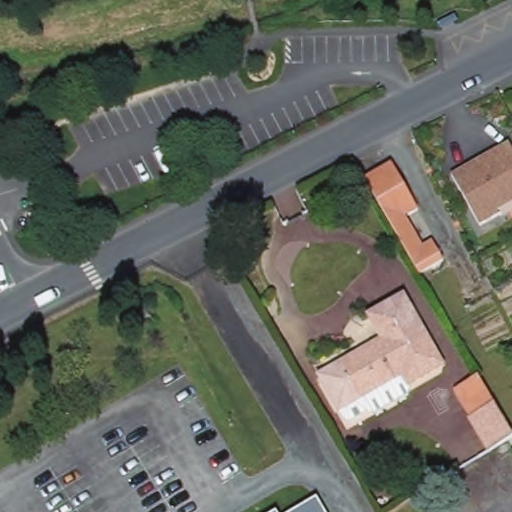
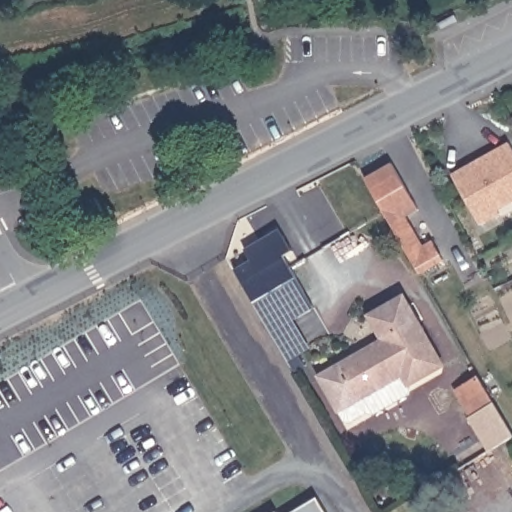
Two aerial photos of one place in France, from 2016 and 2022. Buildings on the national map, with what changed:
unchanged [(512,141),(512,202),(501,208),(503,212),(483,224),(453,175),(511,140),(512,141)]
unchanged [(389,160),(400,177),(417,205),(405,213),(423,242),(432,236),(444,255),(421,269),(391,222),(373,193),(363,176),(389,160)]
new [(235,270),(251,260),(244,249),(279,230),(292,252),(284,257),(314,309),(294,320),(311,350),(288,362),(235,270)]
unchanged [(366,319),(403,298),(445,368),(412,386),(407,396),(373,415),(363,411),(358,402),(336,414),(316,380),(380,344),(366,319)]
unchanged [(454,387),(474,376),(487,401),(506,437),(483,451),(462,415),(468,412),(454,387)]
unchanged [(324,512),(291,512),(316,498),(324,512)]

